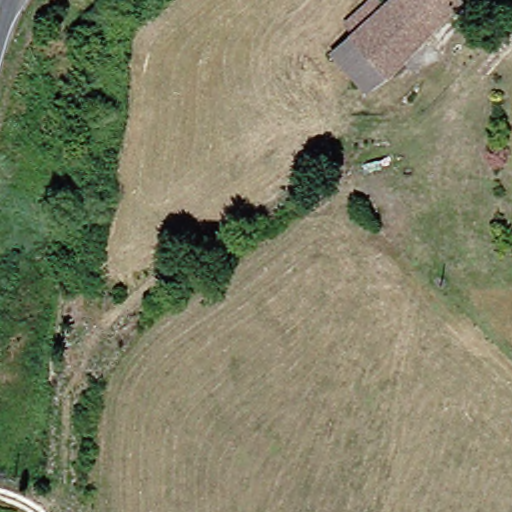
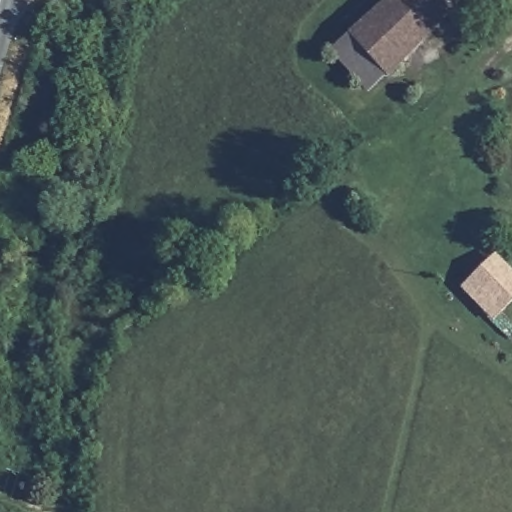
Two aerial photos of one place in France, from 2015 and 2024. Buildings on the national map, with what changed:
unchanged [(347,34),(337,22),(361,0),(375,0),(379,5),(384,0),(439,0),(438,1),(450,12),(391,71),(369,86),(322,52),(340,39),(347,34)]
new [(512,301),(495,316),(468,287),(499,260),(512,275),(512,301)]

